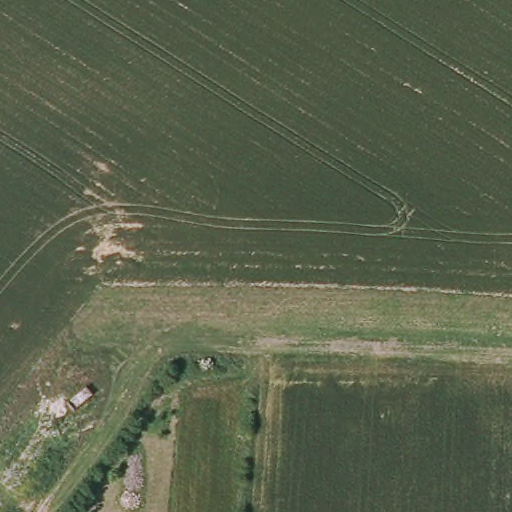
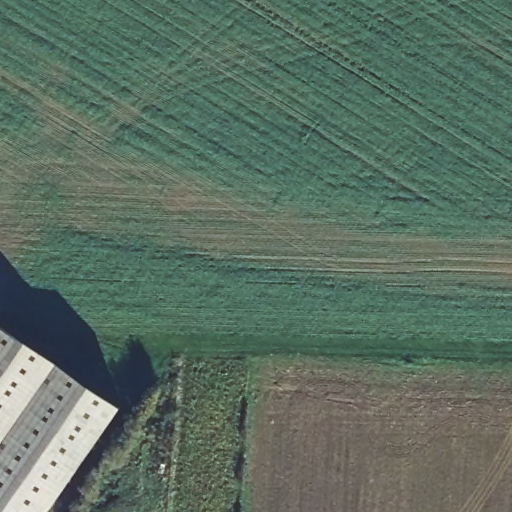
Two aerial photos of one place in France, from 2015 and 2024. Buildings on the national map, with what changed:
new [(118,422),(56,512),(0,512),(0,339),(118,422)]

